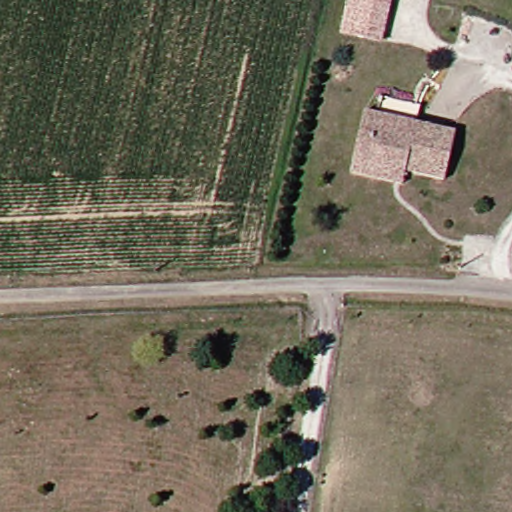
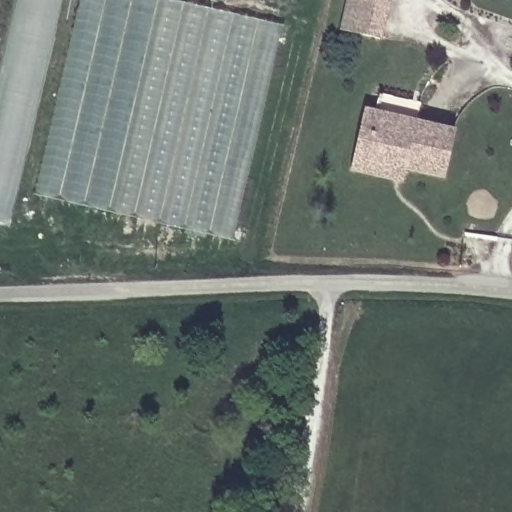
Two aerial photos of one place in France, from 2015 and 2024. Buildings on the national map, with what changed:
new [(62,0),(10,226),(0,224),(0,74),(17,0),(62,0)]
new [(236,240),(34,196),(79,0),(165,0),(283,28),(236,240)]
unchanged [(350,0),(394,0),(385,41),(342,31),(350,0)]
unchanged [(350,169),(352,157),(363,108),(456,128),(445,177),(405,168),(403,182),(350,169)]

